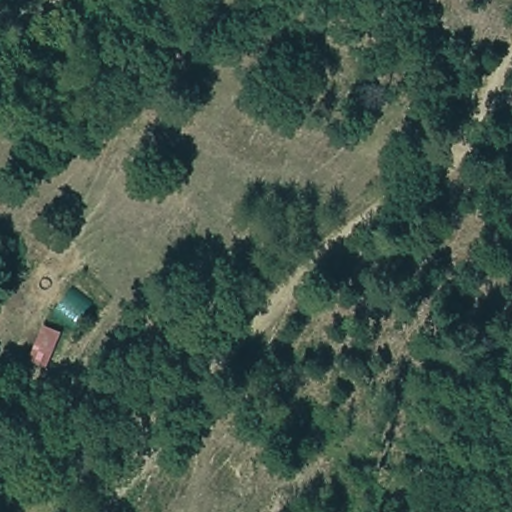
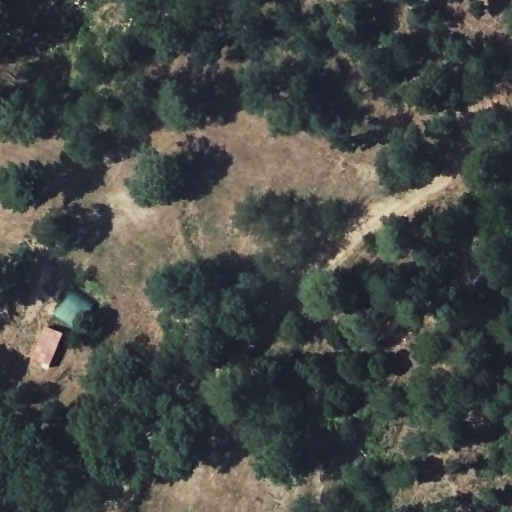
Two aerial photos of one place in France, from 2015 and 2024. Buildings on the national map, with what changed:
unchanged [(26,365),(39,326),(69,336),(52,374),(26,365)]

